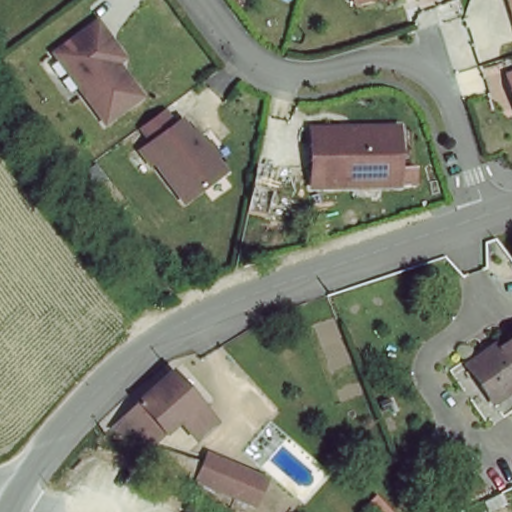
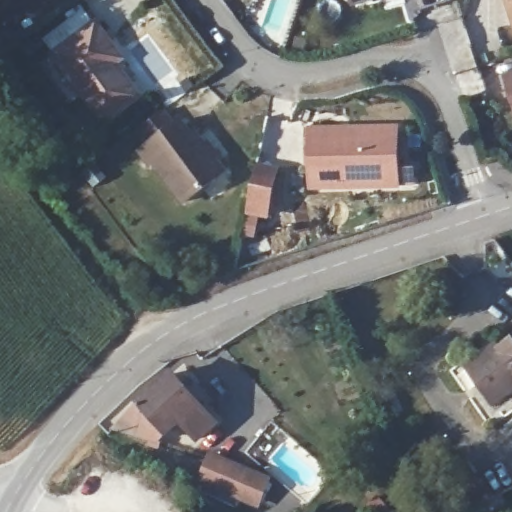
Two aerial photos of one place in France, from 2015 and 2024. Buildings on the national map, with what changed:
unchanged [(102,118),(52,48),(95,17),(115,44),(121,53),(114,58),(138,92),(102,118)]
unchanged [(506,75),(512,73),(512,95),(511,92),(506,75)]
unchanged [(189,121),(193,118),(227,156),(189,189),(156,152),(152,155),(141,143),(178,109),(189,121)]
unchanged [(319,181),(308,181),(308,155),(308,123),(338,123),(347,123),(394,122),(395,180),(374,181),(349,181),(319,181)]
new [(257,163),(280,168),(270,219),(247,215),(257,163)]
unchanged [(487,356),(491,361),(512,342),(512,394),(495,408),(484,392),(469,373),(474,368),(487,356)]
unchanged [(221,419),(198,438),(180,422),(168,432),(152,437),(114,422),(138,399),(177,367),(221,419)]
unchanged [(221,456),(258,472),(255,479),(247,498),(212,483),(210,478),(212,474),(221,456)]

